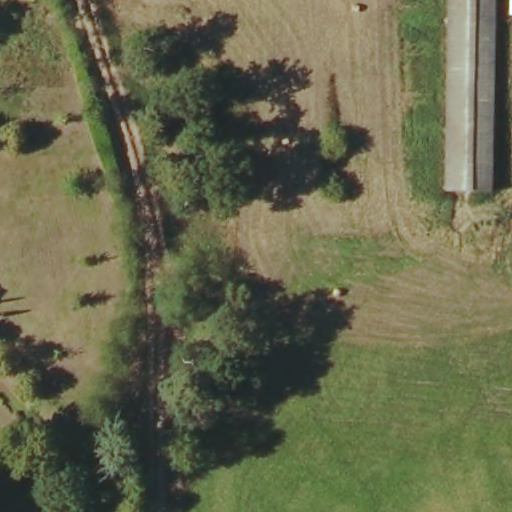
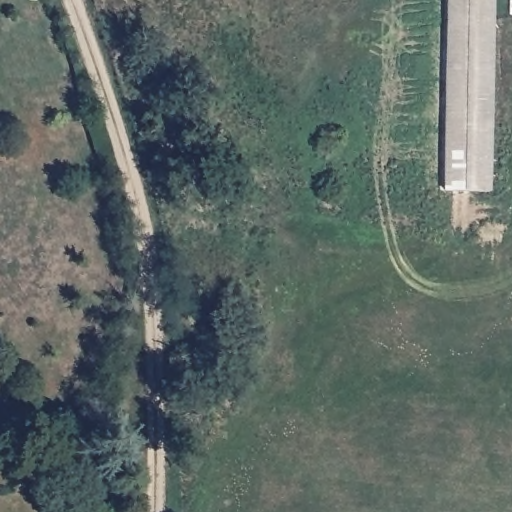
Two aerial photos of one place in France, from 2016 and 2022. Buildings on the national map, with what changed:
unchanged [(467,180),(466,176),(442,181),(444,0),(488,0),(488,181),(467,180)]

